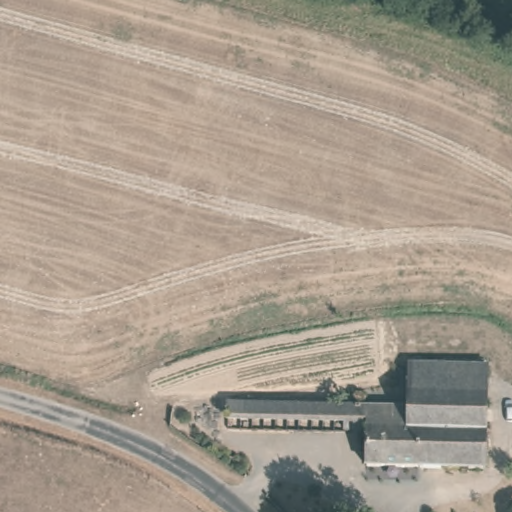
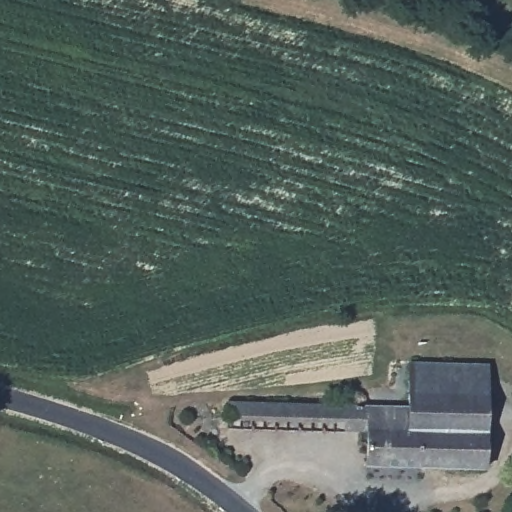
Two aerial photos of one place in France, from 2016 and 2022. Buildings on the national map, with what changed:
unchanged [(483,472),(365,471),(366,449),(358,448),(359,432),(335,432),(335,425),(226,423),(226,402),(342,405),(343,395),(346,392),(349,391),(353,391),(356,393),(358,396),(359,400),(359,405),(402,407),(403,364),(484,366),(483,472)]
unchanged [(330,512),(305,512),(310,503),(330,512)]

